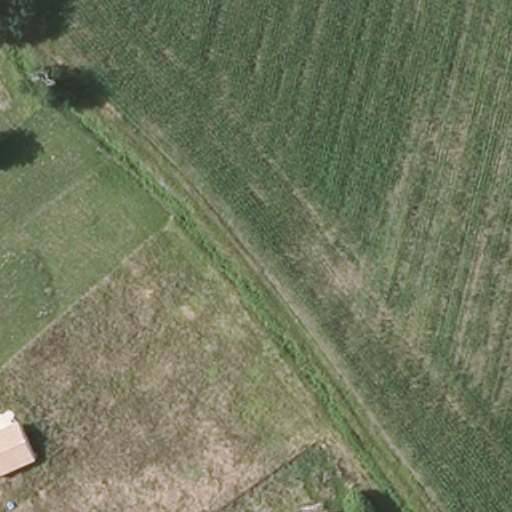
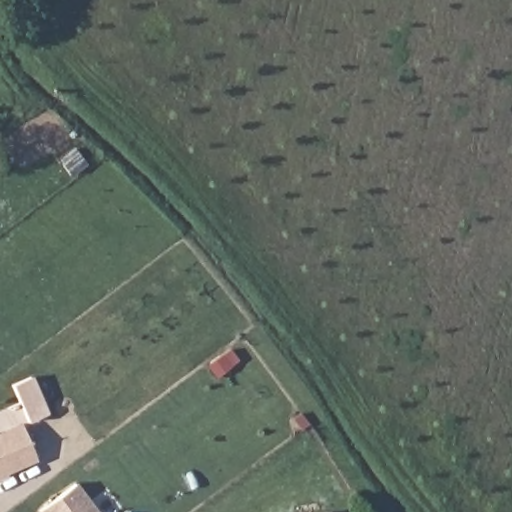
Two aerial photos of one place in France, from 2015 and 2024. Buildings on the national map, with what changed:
new [(29,376),(43,413),(25,420),(10,384),(29,376)]
unchanged [(0,431),(20,422),(36,461),(0,477),(0,431)]
new [(77,482),(99,512),(40,512),(40,511),(77,482)]

